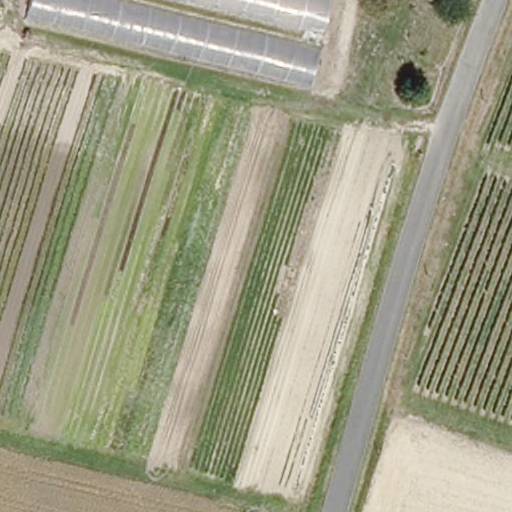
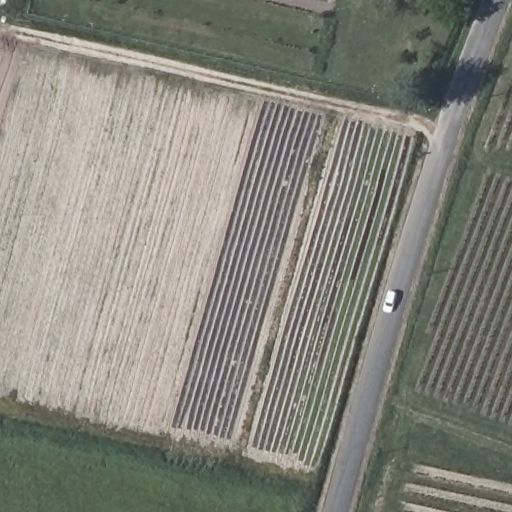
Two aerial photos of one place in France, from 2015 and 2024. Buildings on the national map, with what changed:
demolished [(24,18),(29,0),(340,0),(316,89),(24,18)]

